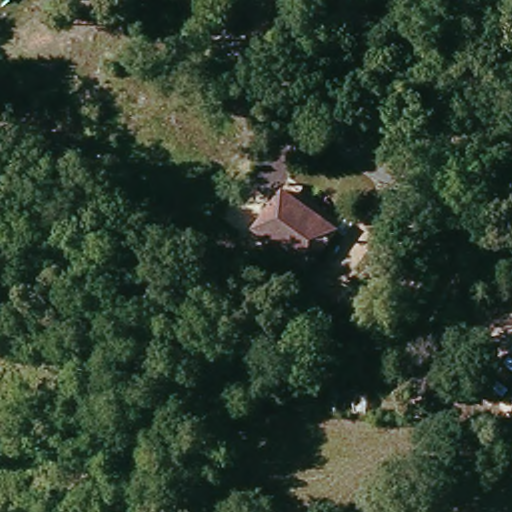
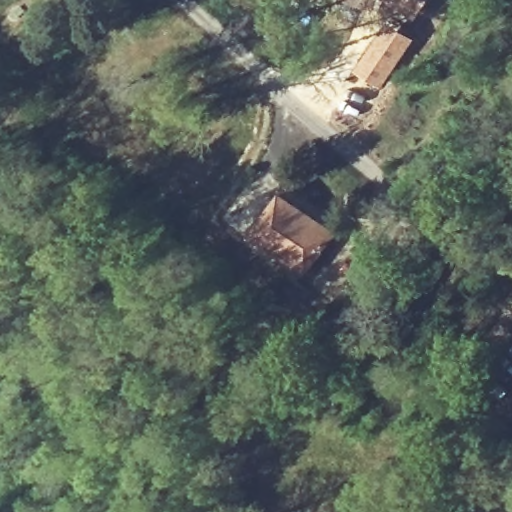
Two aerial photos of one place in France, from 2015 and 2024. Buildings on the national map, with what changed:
new [(413,19),(384,0),(427,0),(413,19)]
new [(387,21),(415,37),(382,86),(354,68),(387,21)]
unchanged [(251,232),(279,196),(286,187),(339,232),(332,240),(303,274),(251,232)]

